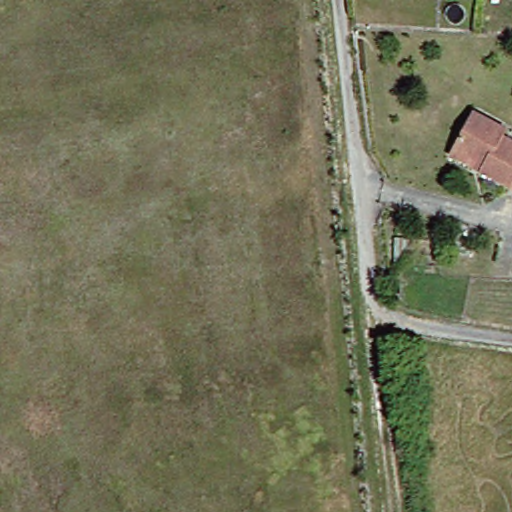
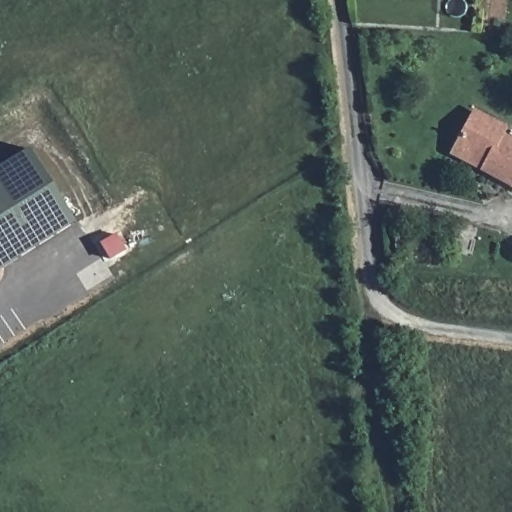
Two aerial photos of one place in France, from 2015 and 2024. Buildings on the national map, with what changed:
unchanged [(449,147),(467,112),(501,127),(497,137),(512,146),(512,188),(475,170),(445,155),(449,147)]
new [(77,224),(0,272),(0,170),(31,151),(77,224)]

